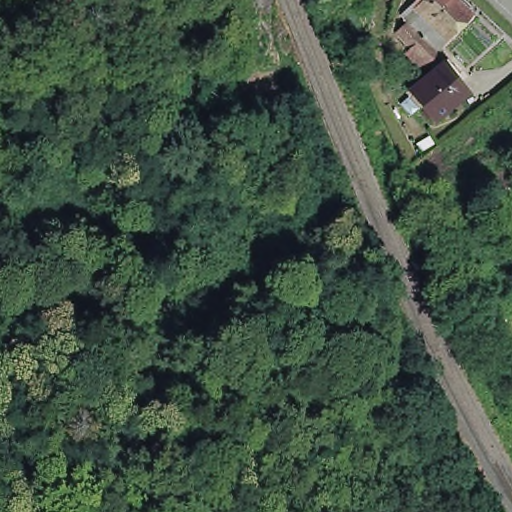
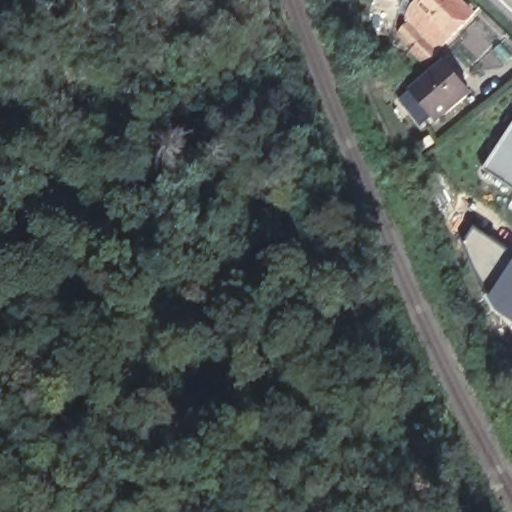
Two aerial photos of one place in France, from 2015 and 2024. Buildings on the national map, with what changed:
unchanged [(420,63),(409,51),(415,44),(402,28),(410,19),(409,17),(416,1),(417,0),(469,0),(478,9),(453,34),(430,57),(420,63)]
unchanged [(448,59),(460,73),(453,80),(464,93),(467,95),(437,121),(434,119),(410,91),(440,65),(448,59)]
new [(481,169),(512,119),(512,192),(481,169)]
new [(472,226),(512,251),(512,261),(494,286),(485,294),(462,241),(472,226)]
new [(494,286),(512,261),(512,324),(494,309),(485,294),(494,286)]
new [(508,350),(512,344),(512,353),(508,350)]

